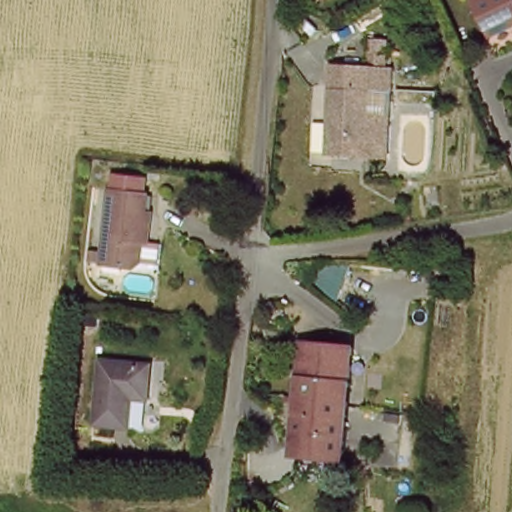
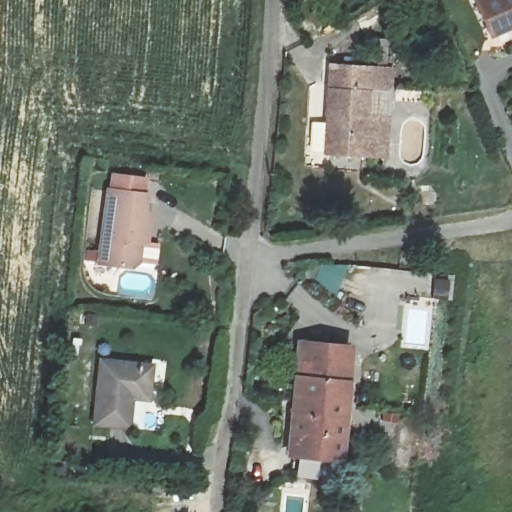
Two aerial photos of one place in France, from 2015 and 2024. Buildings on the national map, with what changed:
unchanged [(481,4),(488,0),(512,0),(512,30),(499,37),(481,4)]
unchanged [(330,153),(332,64),(405,68),(403,91),(373,89),(372,111),(402,114),(398,158),(330,153)]
unchanged [(159,195),(158,211),(163,212),(160,243),(154,243),(152,264),(146,269),(112,265),(120,191),(159,195)]
unchanged [(291,457),(298,347),(349,349),(341,460),(291,457)]
unchanged [(94,426),(100,359),(152,362),(148,400),(132,398),(130,429),(94,426)]

